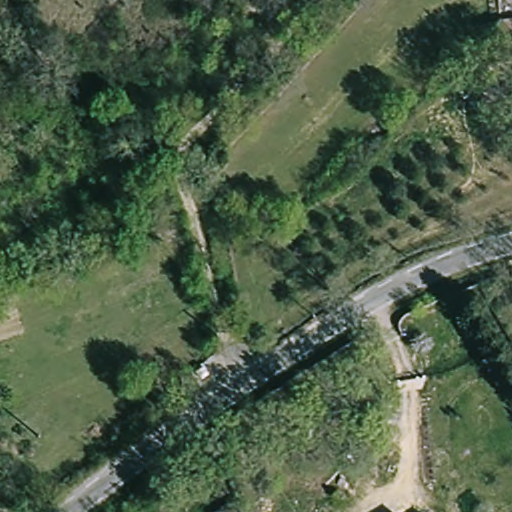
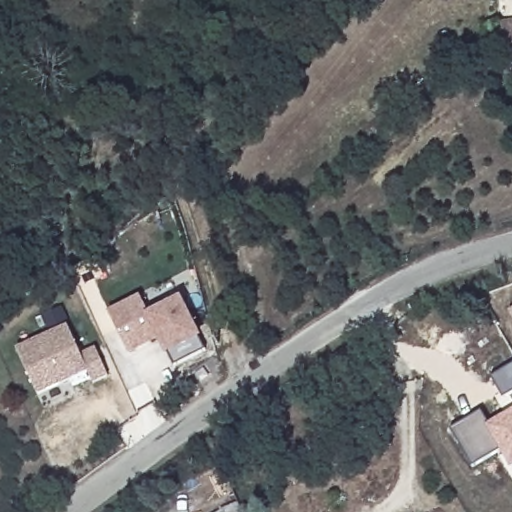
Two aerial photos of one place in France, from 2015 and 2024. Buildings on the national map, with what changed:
unchanged [(501,26),(512,23),(512,47),(506,49),(501,26)]
new [(126,347),(115,313),(144,301),(152,318),(183,305),(207,354),(175,369),(162,339),(136,351),(129,353),(126,347)]
new [(512,309),(512,318),(508,312),(512,309)]
new [(75,330),(87,360),(102,353),(113,382),(97,387),(92,377),(42,397),(23,351),(75,330)]
new [(512,467),(510,468),(500,450),(473,466),(452,429),(481,412),(488,423),(512,409),(512,467)]
unchanged [(238,500),(244,512),(214,512),(213,510),(238,500)]

